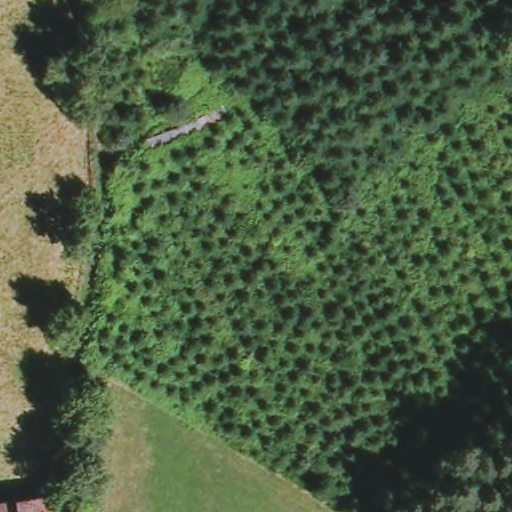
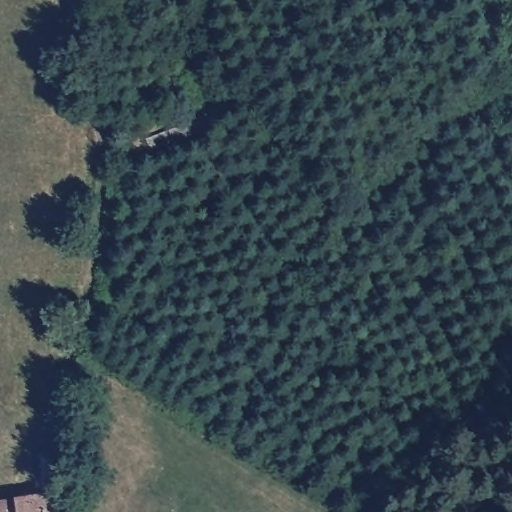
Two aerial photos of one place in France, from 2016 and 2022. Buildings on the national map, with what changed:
unchanged [(53,495),(54,502),(55,512),(0,512),(0,503),(53,495)]

